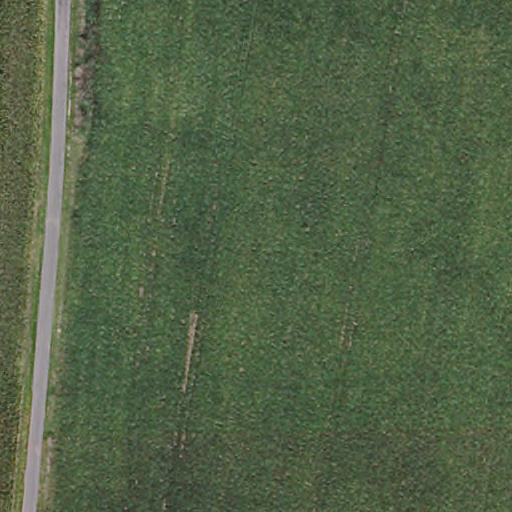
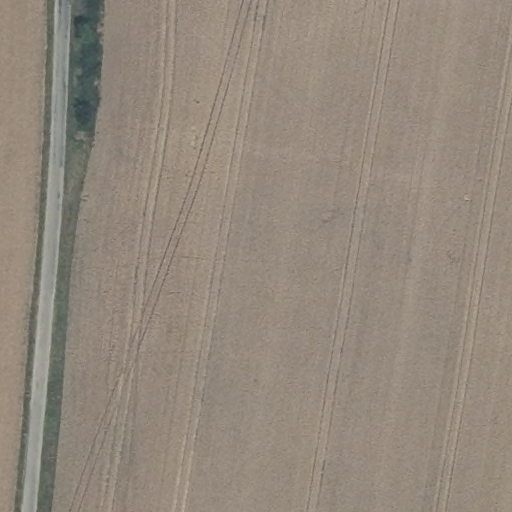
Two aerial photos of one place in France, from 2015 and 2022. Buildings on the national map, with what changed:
[]

